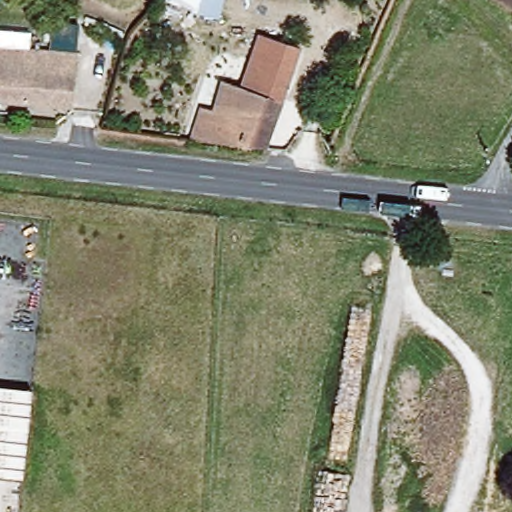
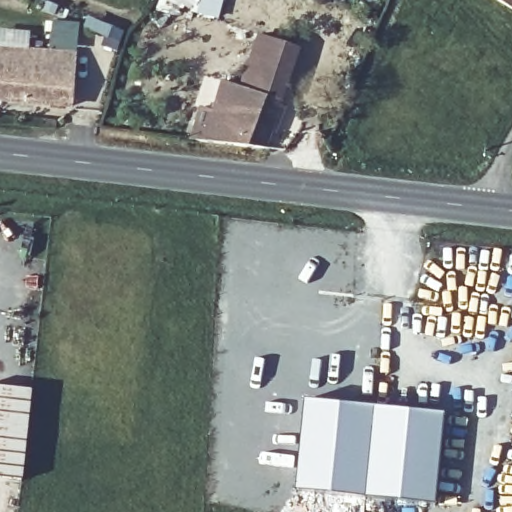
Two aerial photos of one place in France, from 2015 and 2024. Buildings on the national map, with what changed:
new [(219,20),(191,12),(169,0),(225,0),(219,20)]
unchanged [(492,0),(512,0),(512,9),(510,12),(492,0)]
new [(88,16),(125,31),(117,52),(101,46),(105,37),(84,29),(88,16)]
unchanged [(182,137),(195,108),(205,112),(220,86),(236,94),(260,44),(298,62),(257,152),(182,137)]
unchanged [(71,107),(0,101),(0,51),(74,59),(73,64),(71,107)]
unchanged [(0,478),(0,387),(30,392),(20,480),(0,478)]
new [(295,492),(305,402),(444,416),(435,504),(295,492)]

